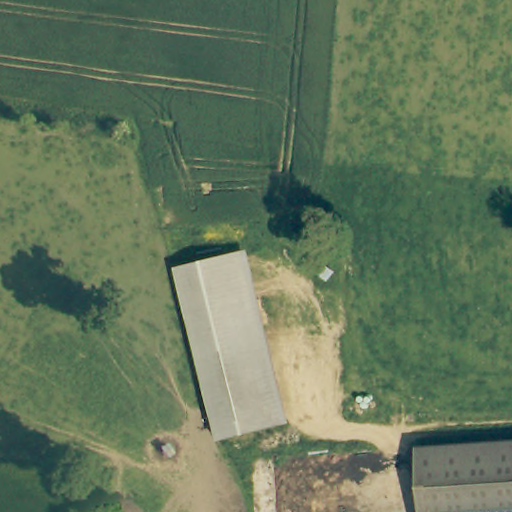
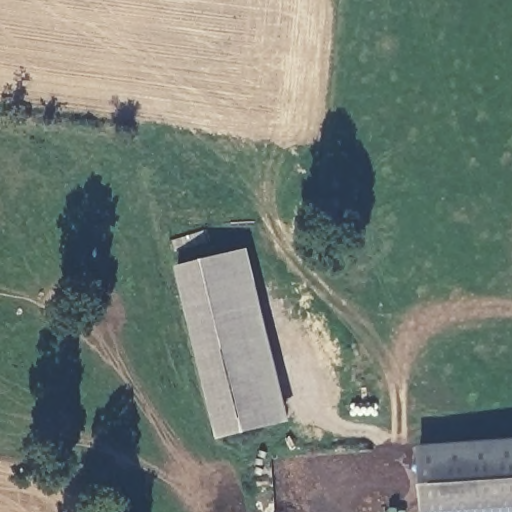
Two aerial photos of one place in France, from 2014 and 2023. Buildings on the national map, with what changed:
unchanged [(248,250),(291,423),(220,441),(175,268),(248,250)]
unchanged [(512,438),(512,512),(429,512),(424,449),(512,438)]

